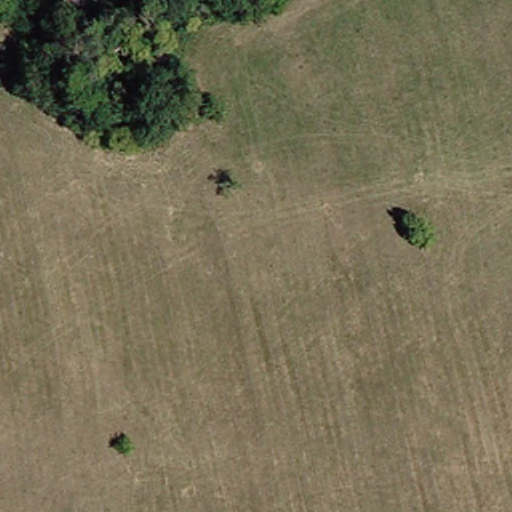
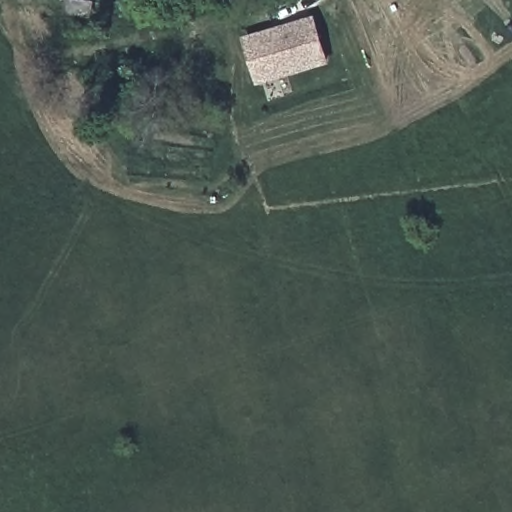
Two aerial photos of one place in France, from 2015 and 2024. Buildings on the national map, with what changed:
unchanged [(67,17),(70,3),(94,9),(90,23),(67,17)]
new [(317,22),(331,64),(262,84),(251,42),(317,22)]
unchanged [(137,54),(152,106),(120,116),(105,63),(137,54)]

